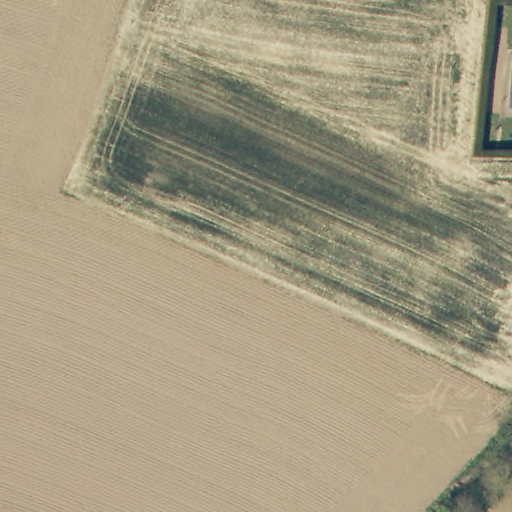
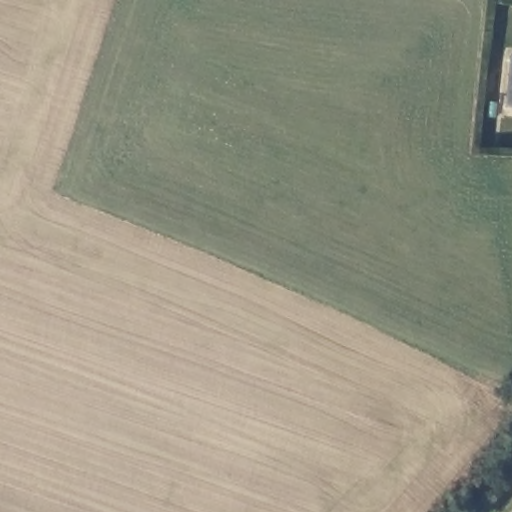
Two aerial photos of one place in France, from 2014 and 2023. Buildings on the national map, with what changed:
unchanged [(504,109),(511,55),(512,56),(512,110),(504,109)]

